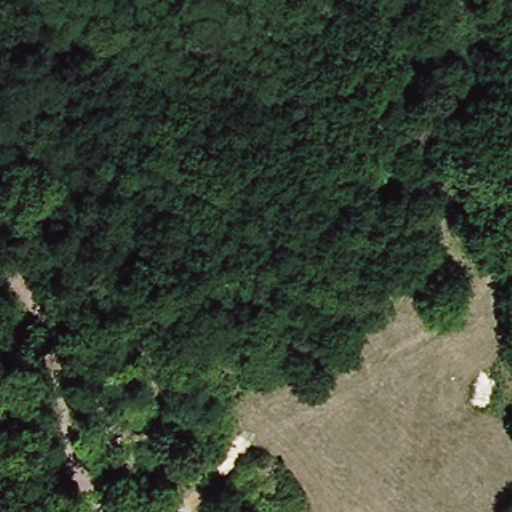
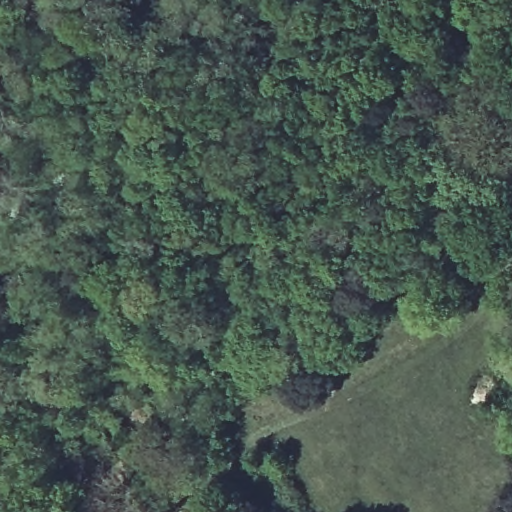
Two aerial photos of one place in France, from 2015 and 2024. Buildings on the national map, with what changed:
unchanged [(121,442),(113,407),(146,399),(156,435),(123,442),(121,442)]
unchanged [(97,412),(113,407),(121,442),(123,442),(138,495),(118,497),(97,412)]

